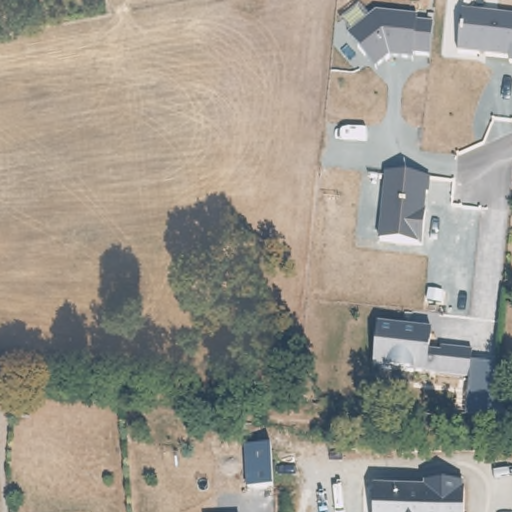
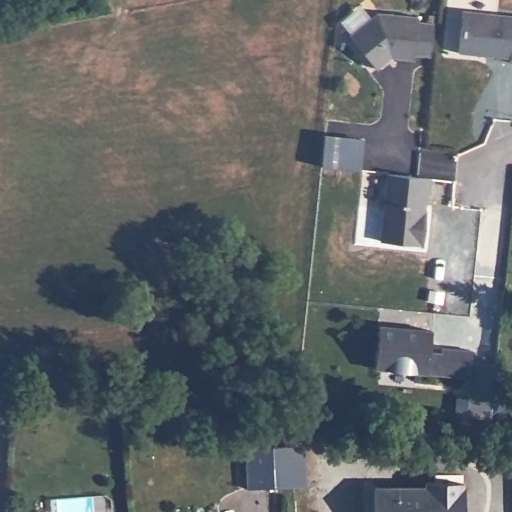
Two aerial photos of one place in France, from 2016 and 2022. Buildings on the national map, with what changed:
unchanged [(510,62),(511,57),(459,52),(462,10),(512,14),(512,62),(510,62)]
unchanged [(376,14),(428,16),(428,28),(438,26),(433,63),(391,59),(375,73),(347,38),(376,14)]
new [(322,135),(362,140),(358,172),(319,167),(322,135)]
unchanged [(427,175),(422,246),(379,241),(386,173),(427,175)]
unchanged [(432,329),(432,346),(469,349),(469,379),(374,371),(378,325),(432,329)]
unchanged [(250,488),(249,448),(304,445),(308,484),(250,488)]
unchanged [(421,487),(421,481),(459,482),(458,487),(460,487),(459,512),(392,512),(393,487),(421,487)]
unchanged [(370,512),(371,486),(393,487),(392,512),(370,512)]

